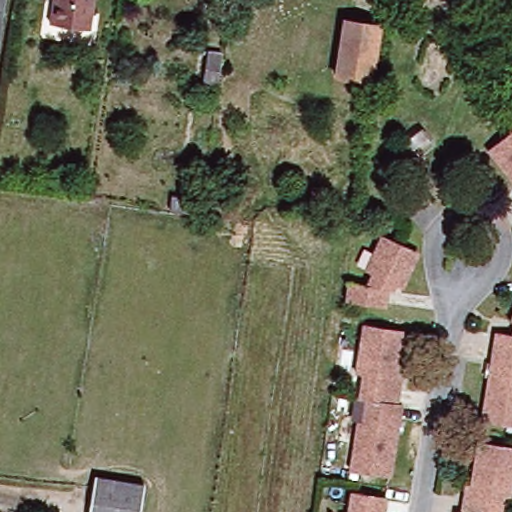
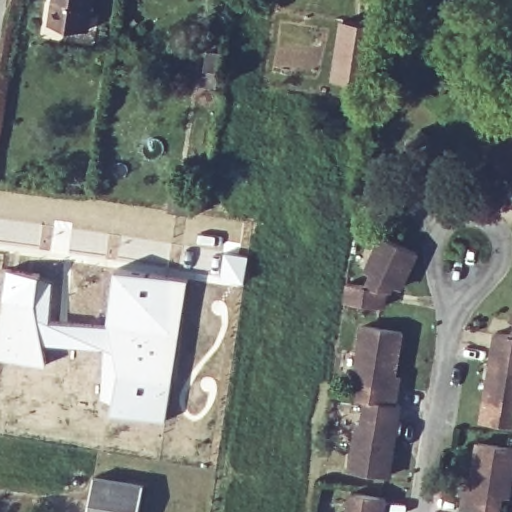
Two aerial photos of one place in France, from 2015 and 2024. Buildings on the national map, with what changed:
unchanged [(54,0),(94,0),(89,26),(78,25),(50,21),(54,0)]
unchanged [(356,0),(382,0),(381,7),(354,5),(356,0)]
unchanged [(337,19),(377,26),(370,81),(327,79),(337,19)]
unchanged [(207,133),(195,131),(200,96),(213,97),(207,133)]
unchanged [(436,110),(445,122),(427,136),(419,121),(436,110)]
unchanged [(512,134),(512,178),(507,180),(488,151),(512,134)]
unchanged [(345,283),(370,288),(373,278),(364,274),(380,239),(412,256),(395,290),(387,287),(383,307),(342,300),(345,283)]
new [(222,251),(249,255),(243,286),(216,281),(222,251)]
new [(6,267),(53,276),(51,319),(41,319),(46,346),(48,367),(0,358),(0,318),(1,312),(6,267)]
new [(51,319),(106,324),(115,267),(189,278),(166,419),(109,411),(111,400),(99,398),(104,350),(46,346),(41,319),(51,319)]
unchanged [(507,316),(512,307),(512,318),(507,316)]
unchanged [(400,330),(393,379),(395,380),(389,408),(393,408),(381,474),(344,468),(351,419),(357,420),(361,401),(354,398),(367,326),(400,330)]
unchanged [(474,419),(491,329),(511,333),(512,332),(512,425),(474,419)]
unchanged [(512,448),(512,463),(506,496),(502,496),(498,512),(452,512),(454,510),(455,499),(461,495),(472,441),(512,448)]
unchanged [(91,476),(140,484),(135,512),(86,512),(91,476)]
unchanged [(383,496),(381,512),(344,512),(346,491),(383,496)]

